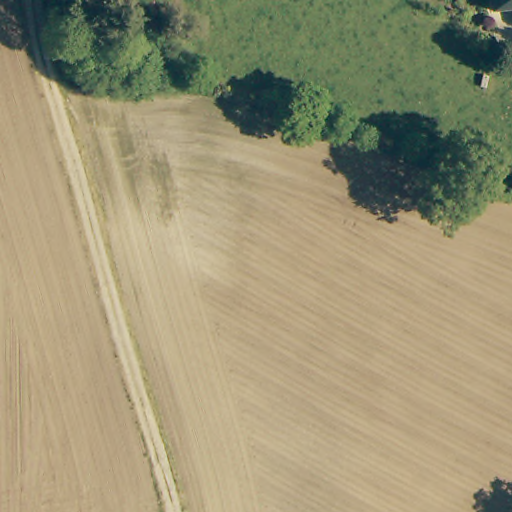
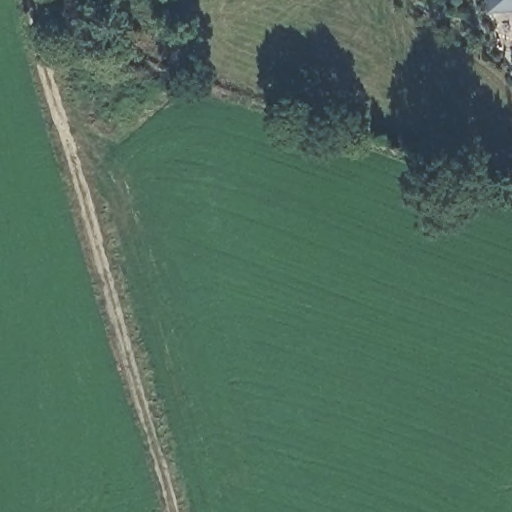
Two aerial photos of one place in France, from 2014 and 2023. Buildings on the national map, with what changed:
unchanged [(489,0),(512,0),(512,7),(492,11),(489,0)]

